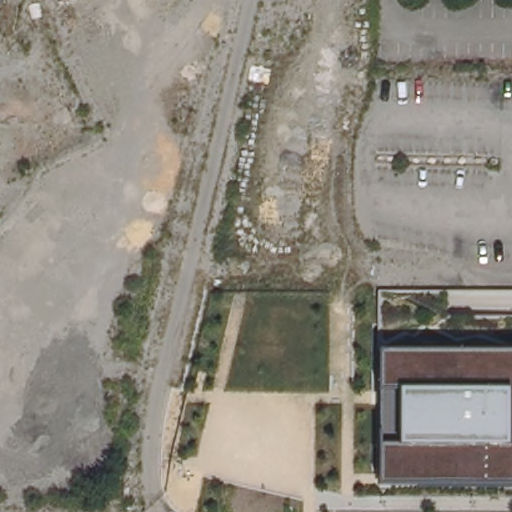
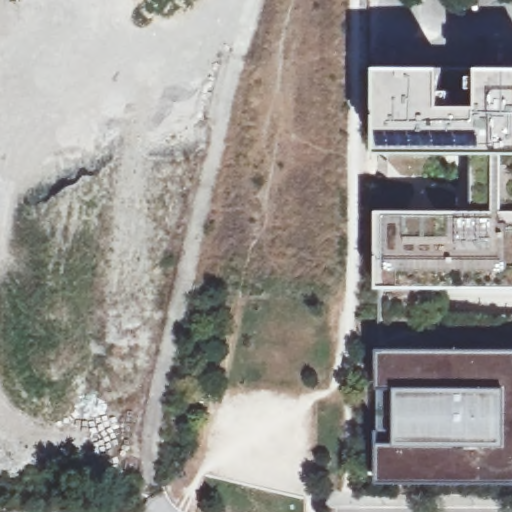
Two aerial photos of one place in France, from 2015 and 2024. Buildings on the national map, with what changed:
new [(379,288),(381,68),(499,68),(499,77),(512,77),(512,288),(379,288)]
unchanged [(381,484),(379,351),(512,351),(512,481),(381,484)]

